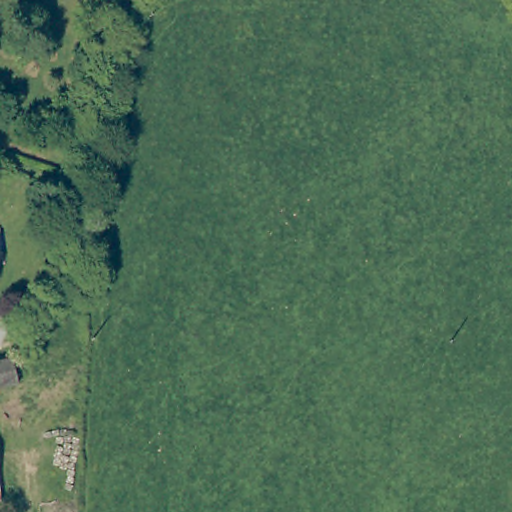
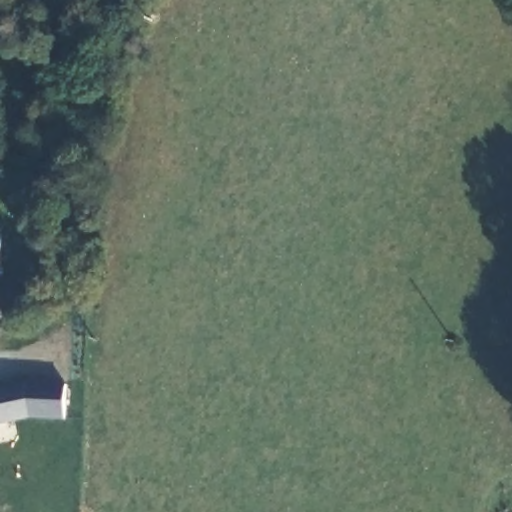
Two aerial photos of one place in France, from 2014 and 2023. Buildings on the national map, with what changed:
demolished [(14,383),(0,386),(0,363),(10,360),(14,383)]
new [(66,383),(65,420),(29,418),(0,424),(0,387),(25,382),(66,383)]
demolished [(0,505),(0,498),(1,505),(0,505)]

